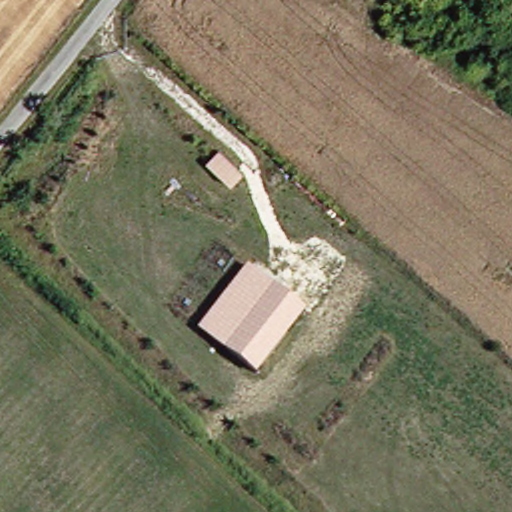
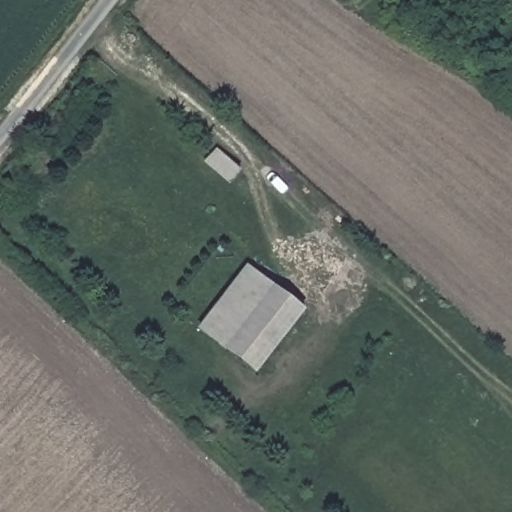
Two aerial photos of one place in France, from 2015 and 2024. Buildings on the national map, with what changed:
unchanged [(306,311),(256,375),(199,330),(247,267),(306,311)]

